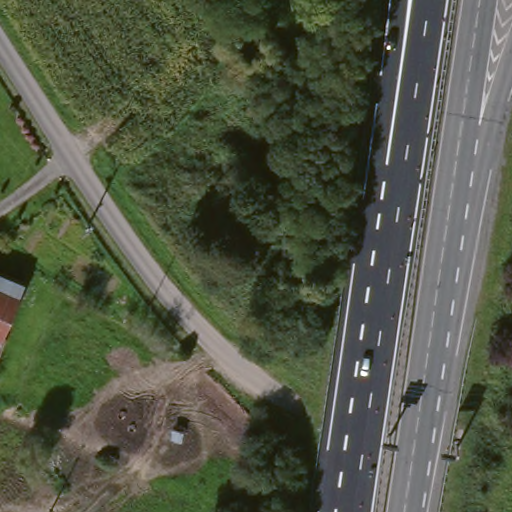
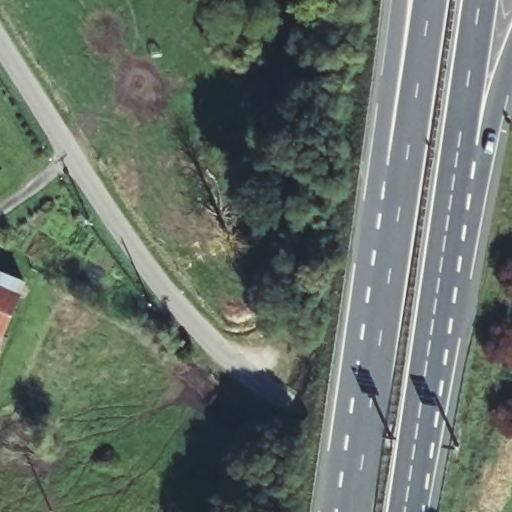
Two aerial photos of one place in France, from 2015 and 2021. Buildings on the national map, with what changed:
unchanged [(0,352),(0,279),(25,289),(0,352)]

